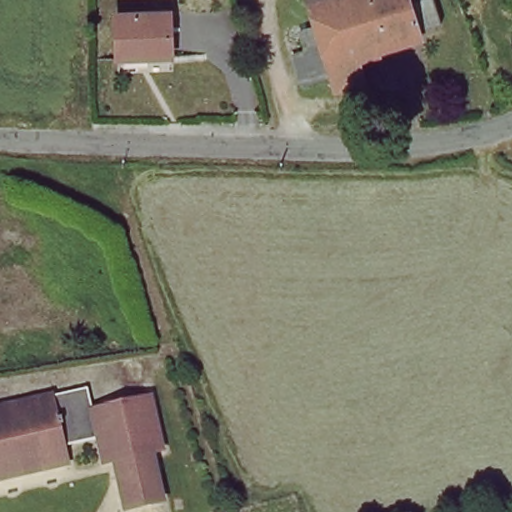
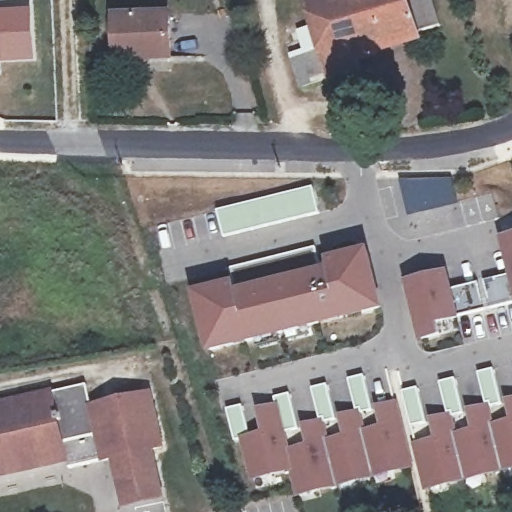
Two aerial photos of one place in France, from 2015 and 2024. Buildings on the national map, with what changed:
unchanged [(412,31),(352,49),(358,75),(329,82),(324,66),(299,73),(293,49),(318,41),(308,0),(429,0),(436,24),(412,31)]
new [(36,61),(0,64),(0,9),(31,8),(36,61)]
unchanged [(165,20),(163,61),(113,59),(117,18),(165,20)]
new [(456,179),(456,212),(402,212),(402,180),(456,179)]
new [(317,186),(324,214),(227,241),(220,213),(317,186)]
new [(447,273),(452,289),(509,274),(500,243),(512,239),(512,309),(457,321),(460,332),(420,341),(406,284),(447,273)]
new [(365,310),(367,314),(345,320),(341,305),(316,311),(318,324),(309,326),(312,338),(288,343),(287,335),(280,337),(282,346),(257,352),(255,338),(210,350),(197,296),(233,286),(235,290),(238,289),(232,269),(317,249),(323,271),(332,269),(330,262),(367,253),(380,306),(365,310)]
new [(491,408),(483,372),(497,368),(506,404),(491,408)]
new [(370,372),(377,409),(360,412),(353,376),(370,372)]
new [(452,418),(443,381),(460,378),(467,414),(452,418)]
unchanged [(115,468),(112,454),(107,456),(100,456),(95,431),(62,439),(66,456),(0,471),(0,401),(84,382),(88,401),(147,389),(160,443),(149,446),(152,460),(160,494),(124,502),(115,468)]
new [(333,382),(340,417),(322,421),(315,386),(333,382)]
new [(420,386),(430,422),(413,426),(404,391),(420,386)]
new [(393,471),(393,467),(373,472),(374,477),(357,480),(357,475),(335,479),(337,485),(321,488),(320,484),(297,488),(293,469),(253,479),(245,440),(265,434),(259,412),(278,408),(275,396),(293,392),(300,427),(283,431),(287,451),(310,446),(306,427),(325,423),(328,442),(347,437),(343,418),(360,415),(364,433),(384,428),(380,409),(397,405),(412,467),(393,471)]
new [(510,403),(512,402),(512,413),(510,403)]
new [(228,444),(220,409),(237,405),(245,440),(228,444)]
new [(452,418),(456,437),(476,432),(472,414),(491,408),(495,426),(512,421),(512,472),(432,493),(418,446),(437,441),(432,423),(452,418)]

